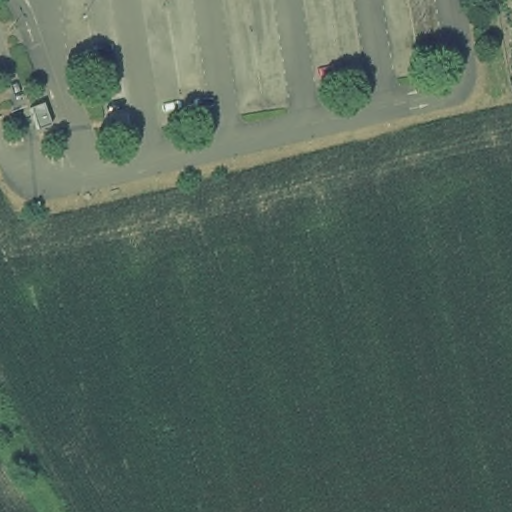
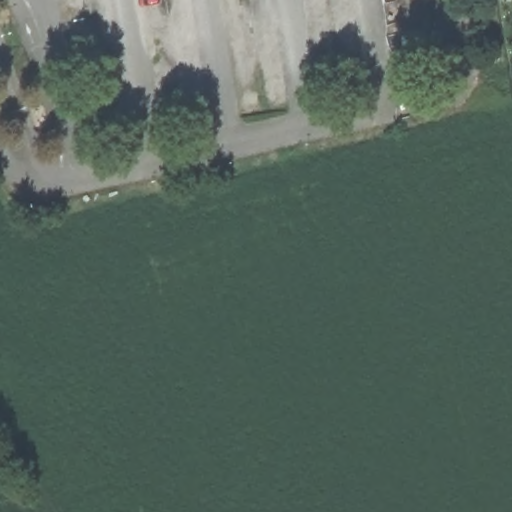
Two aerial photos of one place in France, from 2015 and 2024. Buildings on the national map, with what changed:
[]

